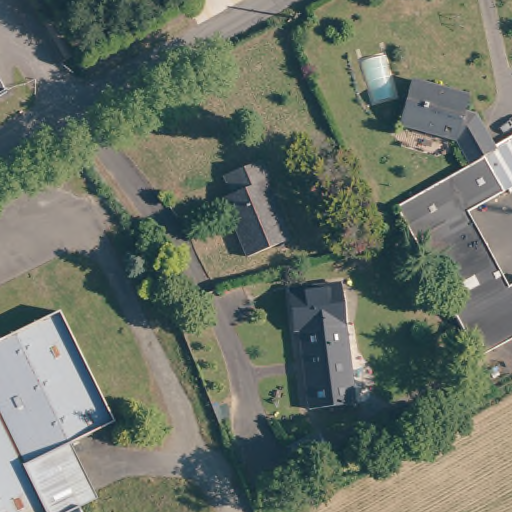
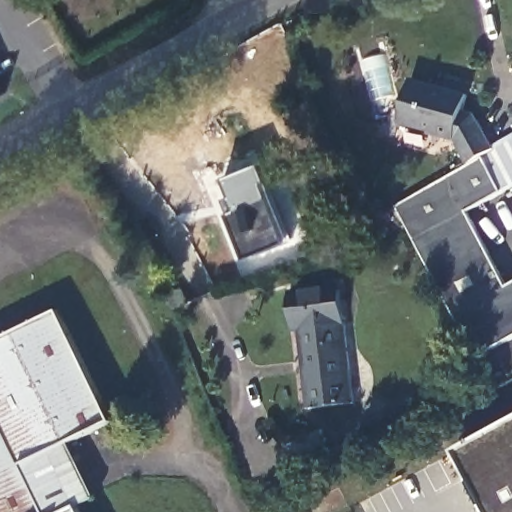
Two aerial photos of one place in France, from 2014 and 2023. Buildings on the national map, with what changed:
unchanged [(14,89),(0,97),(0,65),(14,89)]
unchanged [(461,93),(457,110),(469,112),(488,147),(463,162),(449,139),(392,123),(405,77),(461,93)]
unchanged [(488,147),(512,134),(512,182),(461,210),(502,285),(512,279),(512,334),(473,355),(389,204),(454,167),(463,162),(488,147)]
unchanged [(259,162),(267,182),(262,185),(285,242),(245,255),(221,202),(231,194),(222,177),(259,162)]
unchanged [(313,410),(303,333),(299,334),(294,295),(344,287),(356,405),(313,410)]
unchanged [(61,309),(113,420),(69,441),(35,456),(22,462),(48,512),(0,512),(0,338),(61,309)]
new [(512,422),(512,512),(488,512),(456,452),(512,422)]
unchanged [(280,449),(318,430),(336,468),(294,484),(280,449)]
unchanged [(48,512),(22,462),(35,456),(69,441),(94,495),(77,504),(63,512),(48,512)]
unchanged [(81,512),(63,512),(77,504),(81,512)]

